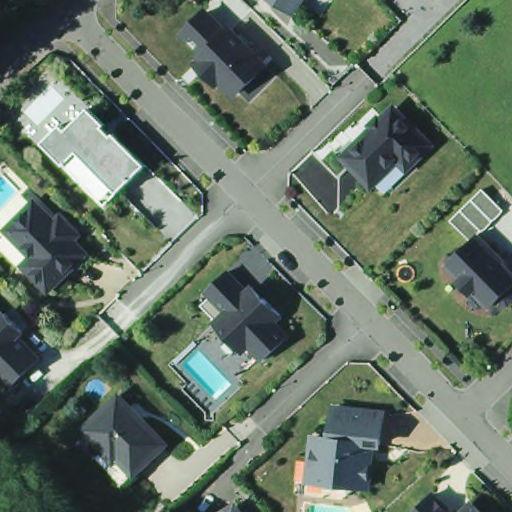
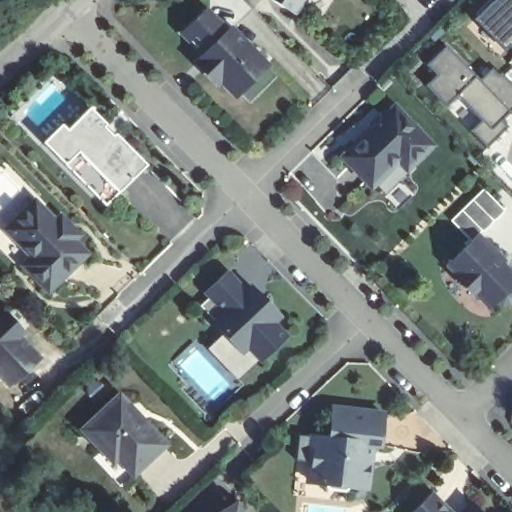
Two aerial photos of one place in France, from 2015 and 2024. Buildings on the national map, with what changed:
unchanged [(271,0),(303,0),(296,13),(271,0)]
new [(507,46),(503,50),(475,20),(495,0),(512,0),(512,50),(507,46)]
unchanged [(268,65),(233,96),(216,84),(212,87),(190,62),(201,55),(180,28),(210,5),(268,65)]
new [(500,121),(506,126),(487,146),(472,131),(482,121),(456,96),(446,106),(426,86),(437,75),(427,66),(446,46),(480,81),(491,69),(500,76),(501,75),(512,85),(512,109),(500,121)]
unchanged [(393,151),(367,177),(342,151),(370,124),(365,119),(374,110),(379,115),(390,105),(423,139),(406,156),(402,160),(393,151)]
unchanged [(118,192),(78,151),(65,164),(43,141),(62,123),(67,129),(90,106),(106,124),(101,128),(110,137),(113,135),(115,133),(146,164),(145,166),(118,192)]
unchanged [(78,151),(118,192),(106,205),(65,164),(78,151)]
unchanged [(505,302),(498,301),(493,297),(487,303),(471,286),(464,286),(458,281),(459,274),(445,260),(467,238),(447,217),(457,207),(468,196),(479,185),(500,206),(490,217),(479,228),(478,227),(475,231),(489,246),(485,249),(512,276),(512,278),(507,283),(511,288),(511,295),(505,302)]
unchanged [(30,256),(3,229),(30,203),(50,223),(56,218),(72,234),(66,239),(80,253),(43,288),(25,268),(21,265),(30,256)]
unchanged [(261,300),(264,298),(280,315),(273,322),(248,346),(241,352),(214,323),(225,312),(206,291),(227,271),(246,292),(250,289),(261,300)]
unchanged [(19,331),(13,336),(35,358),(6,386),(0,379),(0,314),(1,313),(19,331)]
unchanged [(102,445),(83,425),(120,390),(131,402),(141,413),(166,439),(134,469),(118,453),(114,457),(102,445)]
unchanged [(329,407),(378,413),(375,444),(367,443),(325,439),(325,438),(329,407)]
unchanged [(307,462),(310,436),(325,438),(325,439),(367,443),(362,487),(347,485),(341,490),(325,489),(320,483),(305,481),(307,462)]
unchanged [(426,495),(444,512),(409,512),(426,495)]
unchanged [(470,505),(477,512),(463,512),(470,505)]
unchanged [(231,506),(235,512),(221,512),(228,508),(231,506)]

